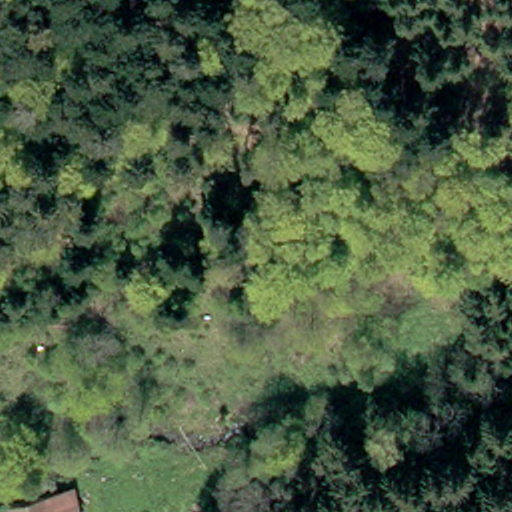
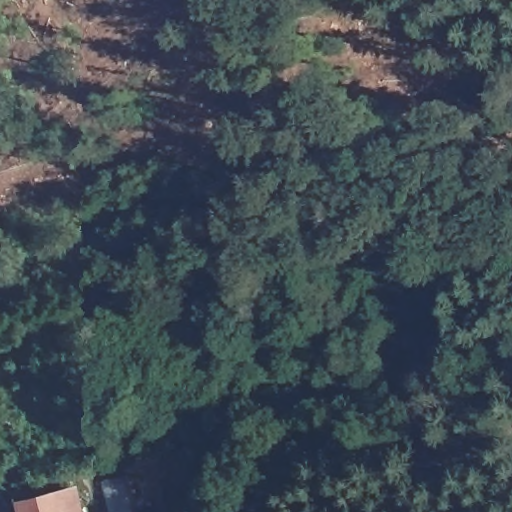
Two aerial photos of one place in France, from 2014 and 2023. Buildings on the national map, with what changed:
unchanged [(75,512),(18,512),(15,498),(70,486),(75,512)]

